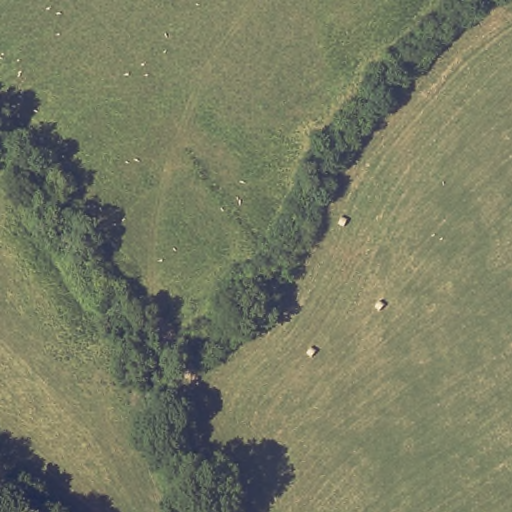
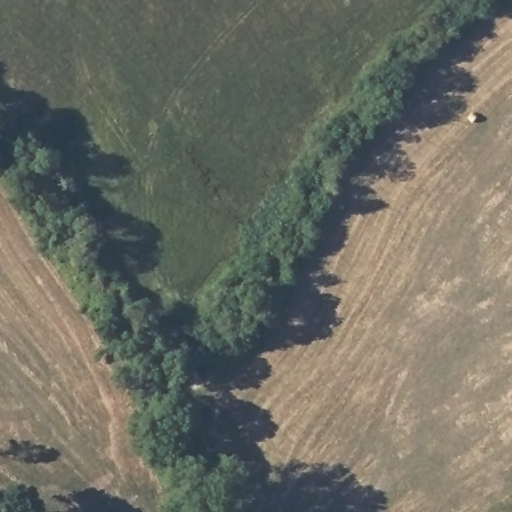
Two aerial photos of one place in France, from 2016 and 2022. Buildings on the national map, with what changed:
[]

